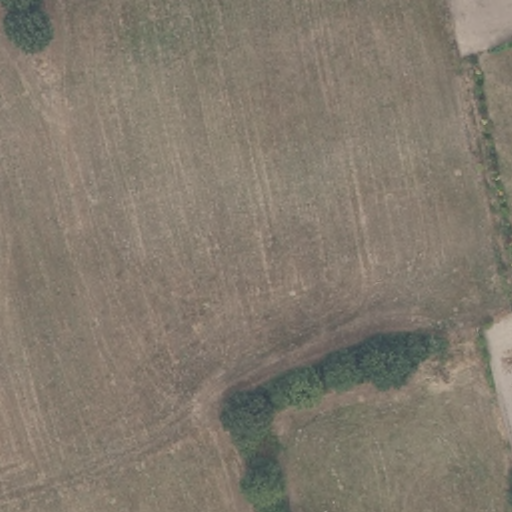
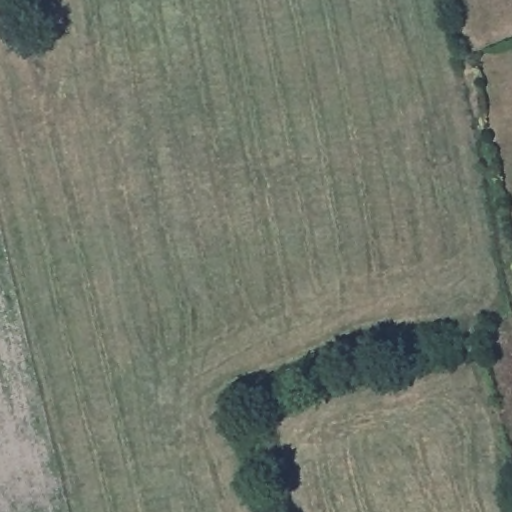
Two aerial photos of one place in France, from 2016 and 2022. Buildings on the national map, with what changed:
[]

